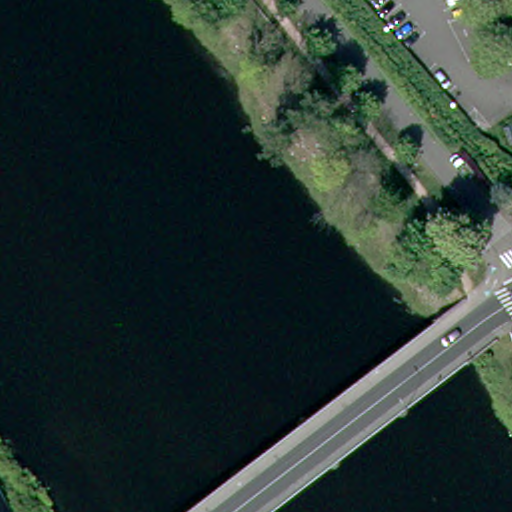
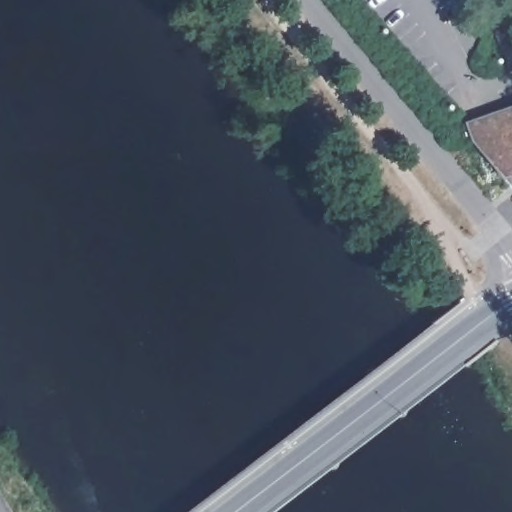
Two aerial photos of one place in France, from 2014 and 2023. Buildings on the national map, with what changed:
new [(506,175),(473,140),(467,121),(512,105),(512,172),(506,175)]

